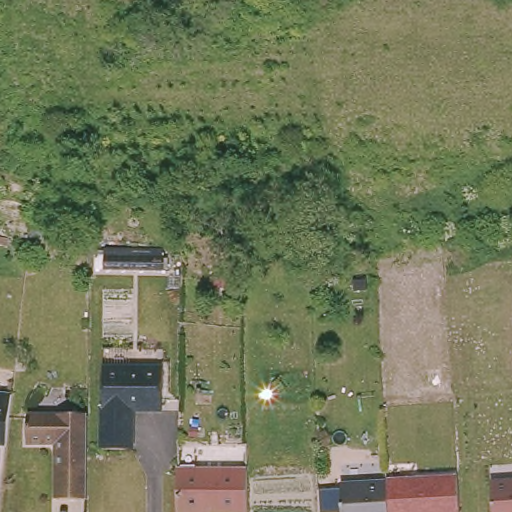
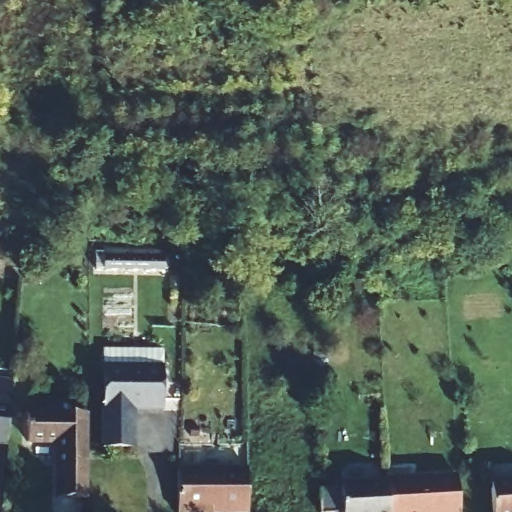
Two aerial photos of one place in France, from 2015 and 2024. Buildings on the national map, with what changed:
unchanged [(169,257),(169,269),(109,270),(109,257),(169,257)]
unchanged [(164,368),(166,409),(138,409),(139,448),(109,448),(108,368),(164,368)]
unchanged [(0,437),(0,391),(18,392),(14,438),(0,437)]
unchanged [(90,507),(58,507),(58,449),(28,449),(28,419),(90,419),(90,507)]
unchanged [(184,469),(208,470),(208,472),(255,473),(256,473),(256,512),(184,512),(184,469)]
unchanged [(386,478),(459,475),(460,512),(388,512),(386,478)]
unchanged [(341,479),(386,478),(388,512),(343,512),(341,479)]
unchanged [(491,481),(512,480),(512,512),(493,512),(491,481)]
unchanged [(341,489),(343,512),(321,512),(319,491),(341,489)]

